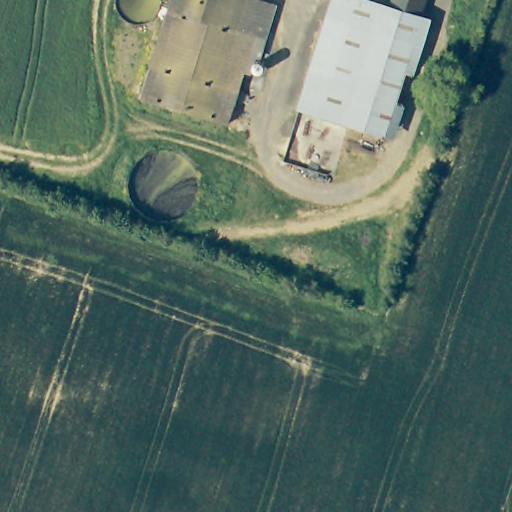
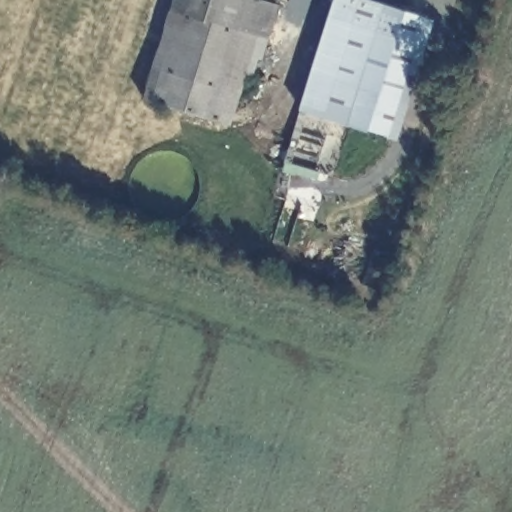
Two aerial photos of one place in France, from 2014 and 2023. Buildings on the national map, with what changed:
unchanged [(143,94),(171,0),(255,0),(240,66),(245,67),(228,121),(143,94)]
unchanged [(259,55),(256,55),(252,68),(245,67),(240,66),(255,0),(263,0),(274,4),(259,55)]
unchanged [(334,0),(385,0),(391,2),(409,6),(426,9),(403,100),(312,77),(334,0)]
unchanged [(403,100),(396,128),(304,102),(312,77),(403,100)]

